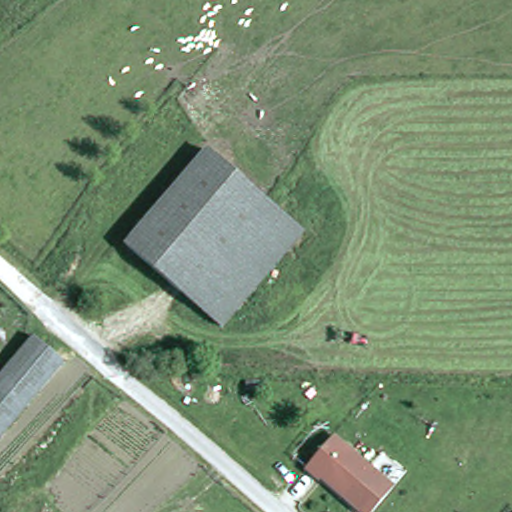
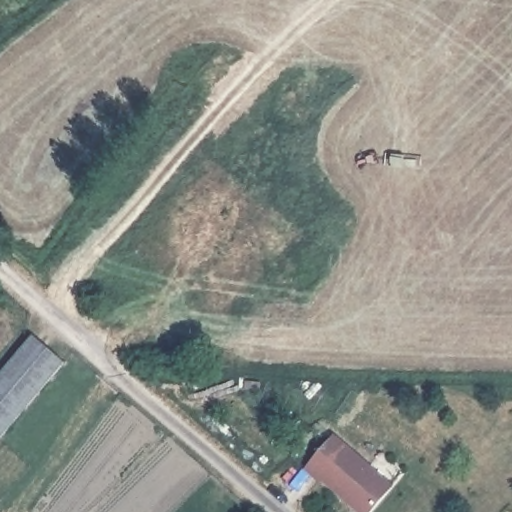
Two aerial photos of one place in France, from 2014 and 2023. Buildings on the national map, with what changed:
demolished [(287,210),(211,308),(132,246),(208,148),(287,210)]
unchanged [(69,365),(30,409),(3,440),(0,437),(0,382),(38,338),(69,365)]
unchanged [(392,491),(375,512),(355,512),(304,470),(333,437),(392,491)]

